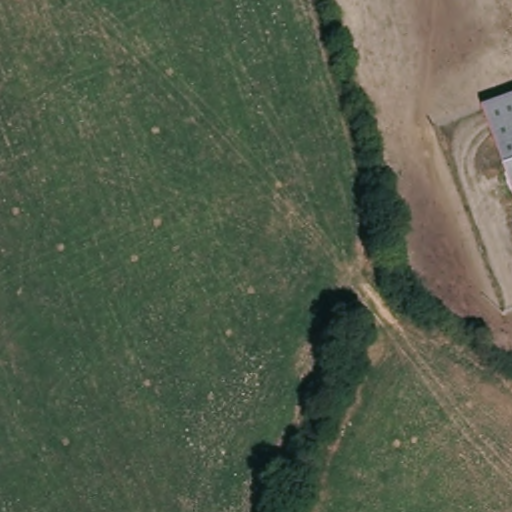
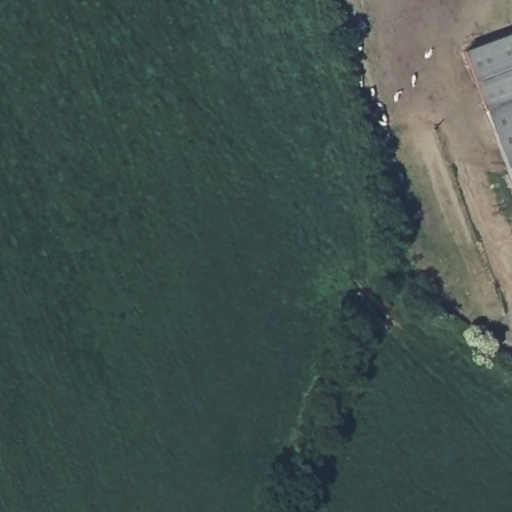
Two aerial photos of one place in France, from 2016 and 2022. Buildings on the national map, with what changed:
new [(462,49),(512,31),(512,99),(484,109),(462,49)]
unchanged [(512,99),(512,178),(484,109),(512,99)]

